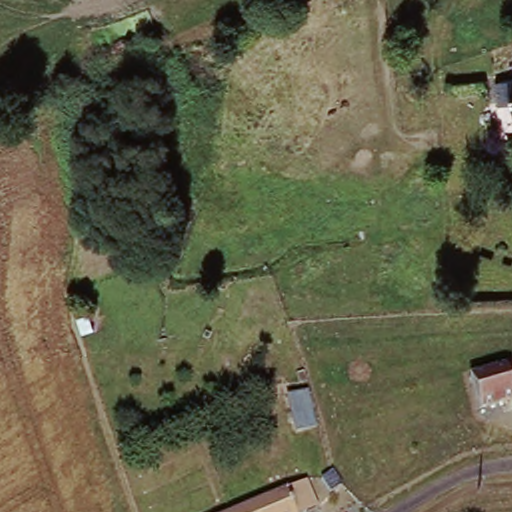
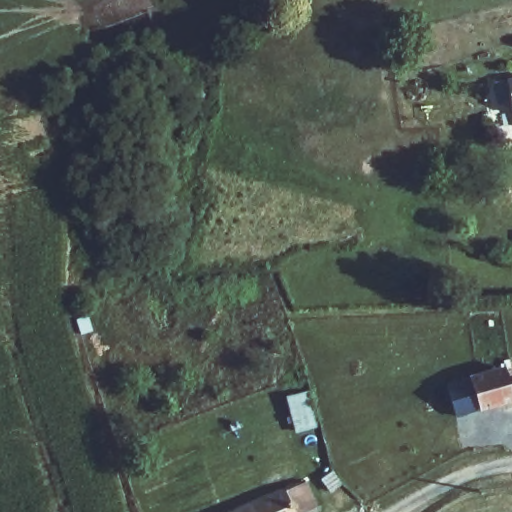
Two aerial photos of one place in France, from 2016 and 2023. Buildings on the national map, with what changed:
unchanged [(509,103),(507,103),(505,82),(512,80),(512,128),(511,128),(509,103)]
unchanged [(512,370),(512,404),(488,411),(477,379),(512,370)]
unchanged [(325,431),(311,437),(300,405),(316,398),(325,431)]
unchanged [(322,508),(312,512),(243,512),(311,483),(322,508)]

